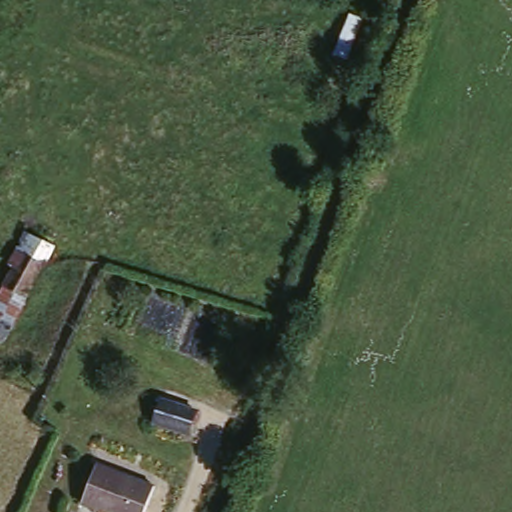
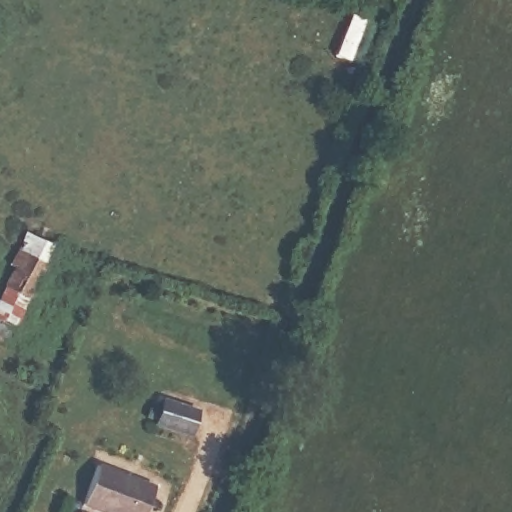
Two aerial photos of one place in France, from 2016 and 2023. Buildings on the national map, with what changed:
unchanged [(347,16),(362,23),(350,62),(332,56),(347,16)]
unchanged [(16,254),(9,251),(16,234),(50,251),(15,329),(0,321),(0,293),(16,254)]
unchanged [(161,395),(196,411),(185,434),(152,420),(161,395)]
unchanged [(156,489),(147,512),(96,512),(81,506),(98,465),(156,489)]

